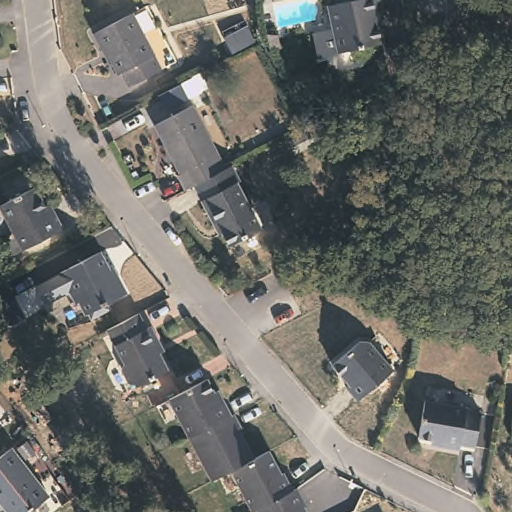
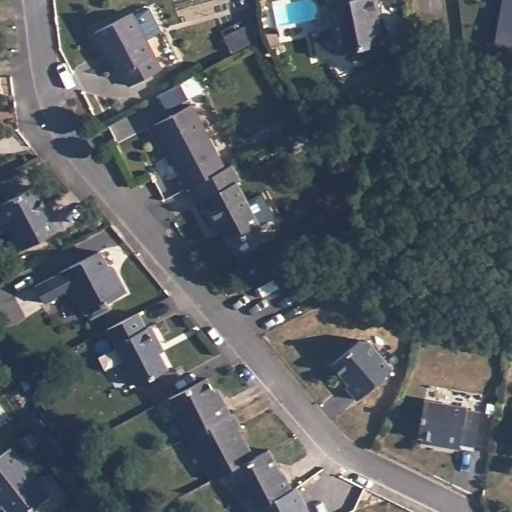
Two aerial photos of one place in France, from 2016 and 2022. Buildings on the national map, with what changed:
unchanged [(374,11),(376,20),(378,19),(383,41),(339,51),(328,4),(336,2),(336,0),(377,0),(379,10),(374,11)]
new [(512,0),(512,47),(494,43),(503,0),(512,0)]
unchanged [(158,65),(126,83),(119,71),(118,72),(104,49),(102,50),(92,31),(127,10),(158,65)]
unchanged [(253,37),(232,49),(225,35),(246,23),(253,37)]
unchanged [(185,99),(178,86),(189,79),(189,78),(196,74),(203,88),(196,92),(197,93),(185,99)]
unchanged [(190,185),(181,189),(172,174),(175,172),(150,124),(187,104),(221,168),(190,185)]
unchanged [(307,140),(291,148),(284,135),(300,127),(307,140)]
unchanged [(227,165),(235,181),(233,182),(257,228),(225,245),(213,222),(210,223),(190,185),(221,168),(227,165)]
unchanged [(8,242),(15,238),(0,210),(0,205),(33,187),(43,205),(47,203),(53,213),(61,228),(22,250),(14,254),(8,242)]
unchanged [(110,269),(117,271),(125,287),(106,298),(109,303),(91,313),(88,307),(87,308),(80,295),(76,298),(69,285),(44,299),(35,282),(59,268),(59,267),(97,246),(110,269)]
unchanged [(145,327),(150,325),(158,341),(154,343),(168,368),(137,385),(136,383),(129,381),(122,368),(124,361),(106,329),(137,312),(145,327)]
unchanged [(351,388),(354,385),(337,365),(366,340),(371,340),(397,370),(362,401),(351,388)]
unchanged [(232,467),(213,478),(170,397),(182,391),(208,377),(219,398),(223,396),(231,411),(234,410),(241,425),(239,426),(255,456),(232,467)]
unchanged [(424,401),(466,408),(466,410),(481,413),(475,447),(460,444),(459,449),(442,446),(443,441),(418,437),(424,401)]
unchanged [(232,467),(255,456),(269,448),(281,470),(283,468),(292,486),(257,504),(253,507),(232,467)]
unchanged [(53,497),(36,512),(11,512),(0,499),(0,461),(13,450),(53,497)]
unchanged [(297,484),(306,501),(304,502),(309,512),(261,512),(257,504),(292,486),(297,484)]

